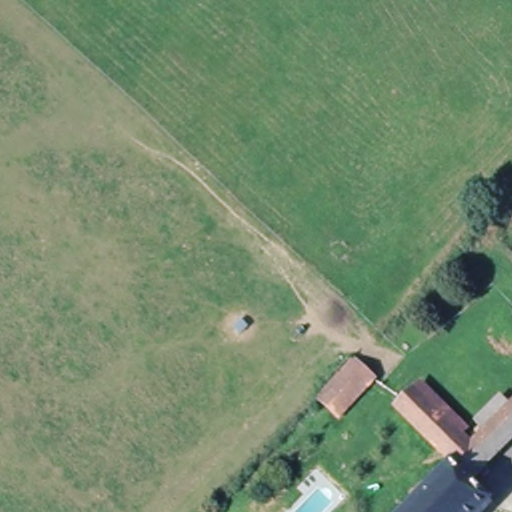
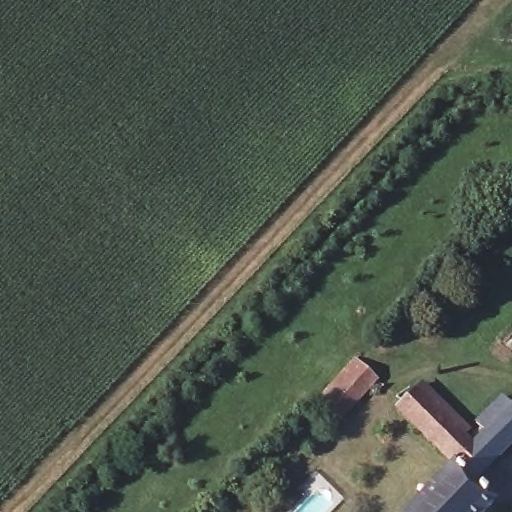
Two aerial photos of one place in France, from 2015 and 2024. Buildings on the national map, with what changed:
unchanged [(346,422),(320,398),(357,360),(380,383),(346,422)]
unchanged [(400,408),(426,382),(471,431),(467,435),(475,442),(453,467),(400,408)]
unchanged [(453,467),(475,442),(487,428),(481,420),(505,395),(512,401),(512,449),(476,485),(453,467)]
unchanged [(476,485),(496,503),(488,512),(410,512),(453,467),(476,485)]

